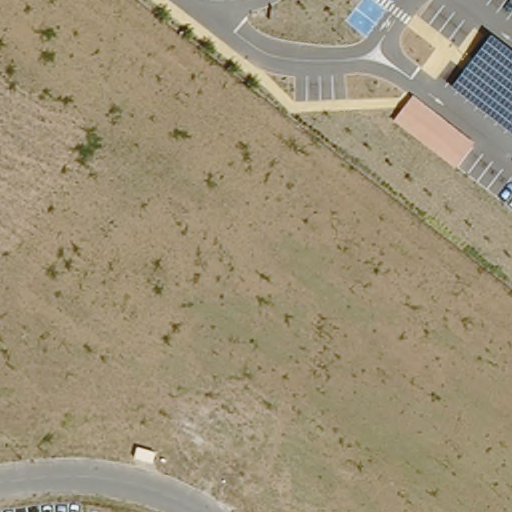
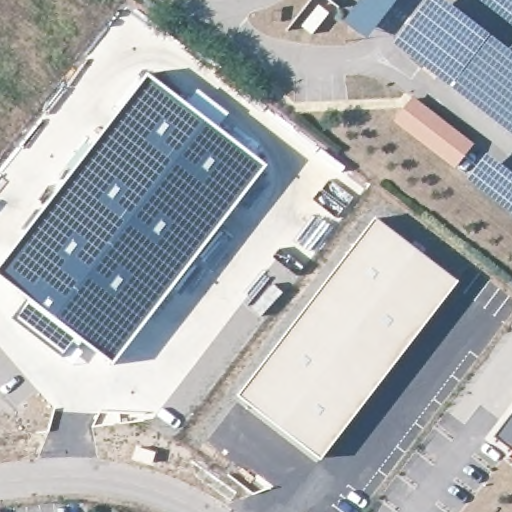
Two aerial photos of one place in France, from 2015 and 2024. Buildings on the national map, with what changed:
new [(344,21),(360,0),(397,0),(367,39),(344,21)]
new [(393,43),(426,0),(444,0),(492,36),(453,86),(393,43)]
new [(512,0),(512,23),(482,0),(512,0)]
unchanged [(512,52),(512,132),(453,86),(492,36),(512,52)]
new [(38,217),(110,123),(147,71),(186,100),(219,126),(269,165),(182,279),(114,365),(83,343),(70,360),(16,317),(29,299),(0,273),(0,270),(38,217)]
unchanged [(414,95),(475,143),(456,167),(395,121),(414,95)]
new [(512,214),(466,179),(486,153),(512,172),(512,214)]
new [(316,291),(375,217),(459,281),(320,461),(236,396),(316,291)]
new [(512,413),(512,447),(495,435),(512,413)]
new [(512,455),(512,456),(511,456),(512,455)]

